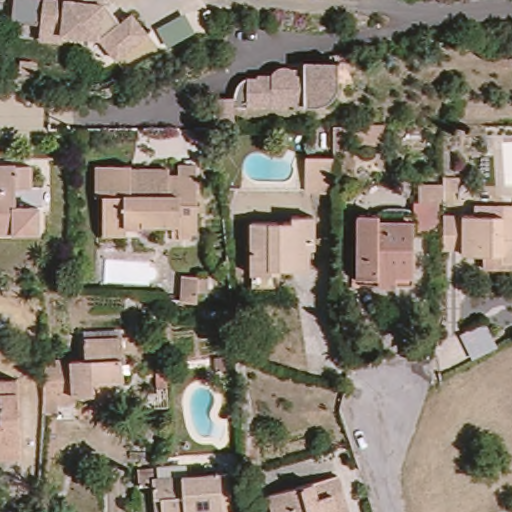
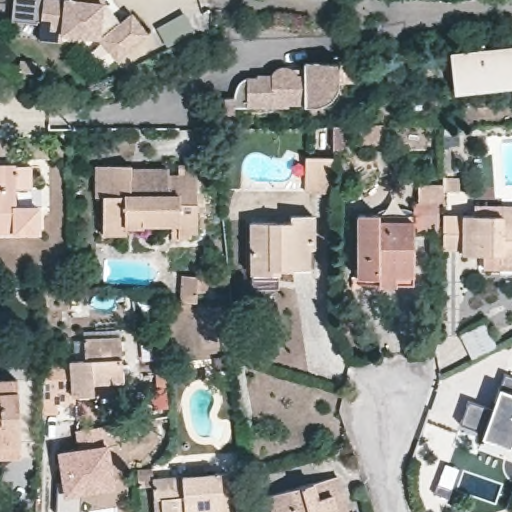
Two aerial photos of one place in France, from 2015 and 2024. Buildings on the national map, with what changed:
unchanged [(60,1),(60,0),(100,0),(100,1),(118,24),(129,16),(145,35),(113,61),(95,41),(56,38),(55,44),(32,42),(33,27),(36,0),(60,1)]
new [(512,89),(453,96),(448,51),(512,45),(512,89)]
unchanged [(293,70),(295,73),(297,76),(304,76),(304,63),(328,63),(338,63),(338,83),(339,93),(338,95),(337,97),(335,100),(333,103),(331,105),(328,106),(325,108),(318,108),(306,109),(306,106),(290,106),(290,108),(235,109),(235,129),(215,129),(215,126),(213,99),(235,99),(235,96),(236,94),(237,91),(238,89),(239,87),(240,85),(242,83),(243,82),(246,81),(248,79),(258,79),(258,76),(272,76),(273,75),(275,71),(278,70),(281,68),(285,68),(290,69),(293,70)]
unchanged [(355,127),(383,127),(383,145),(355,146),(355,127)]
unchanged [(338,154),(337,188),(310,187),(310,155),(338,154)]
unchanged [(99,193),(100,162),(111,162),(134,162),(135,166),(150,165),(172,166),(172,172),(183,172),(182,162),(200,162),(200,172),(200,228),(183,227),(183,220),(146,220),(146,223),(128,223),(128,230),(107,230),(107,216),(107,194),(99,193)]
unchanged [(19,163),(35,164),(35,201),(41,202),(42,228),(0,227),(0,163),(19,163)]
unchanged [(442,180),(458,180),(458,193),(442,193),(441,204),(418,203),(419,178),(442,178),(442,180)]
unchanged [(465,246),(446,246),(447,212),(507,213),(507,200),(512,200),(512,267),(486,266),(485,251),(465,251),(465,246)]
unchanged [(252,271),(252,264),(252,219),(290,219),(290,215),(313,215),(313,245),(314,258),(313,265),(278,265),(277,271),(252,271)]
unchanged [(411,216),(411,222),(412,286),(356,286),(357,217),(378,217),(411,216)]
unchanged [(214,276),(215,305),(190,303),(191,276),(214,276)]
unchanged [(467,364),(455,336),(480,324),(492,352),(467,364)]
unchanged [(95,331),(130,330),(131,371),(121,372),(121,395),(105,396),(105,386),(65,389),(65,404),(51,405),(51,400),(55,353),(95,351),(95,331)]
new [(482,439),(485,431),(460,425),(469,400),(493,407),(500,389),(505,375),(512,377),(512,443),(510,448),(482,439)]
unchanged [(21,378),(24,440),(25,452),(7,453),(0,453),(0,379),(21,378)]
new [(152,391),(167,390),(169,410),(154,411),(152,391)]
new [(80,451),(78,431),(105,428),(112,489),(64,495),(58,453),(80,451)]
unchanged [(160,476),(230,472),(232,512),(161,512),(160,496),(160,476)]
unchanged [(262,498),(331,479),(335,495),(340,512),(266,512),(262,498)]

